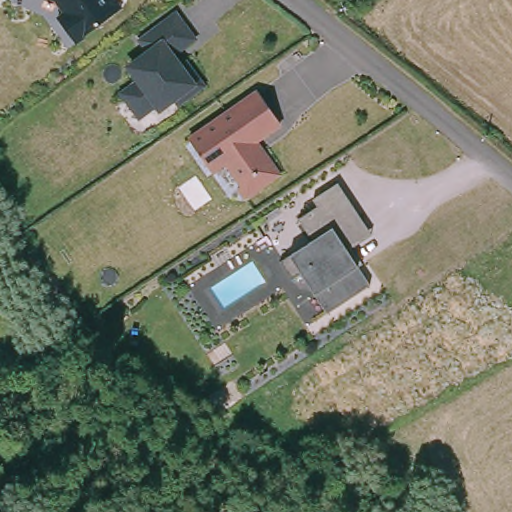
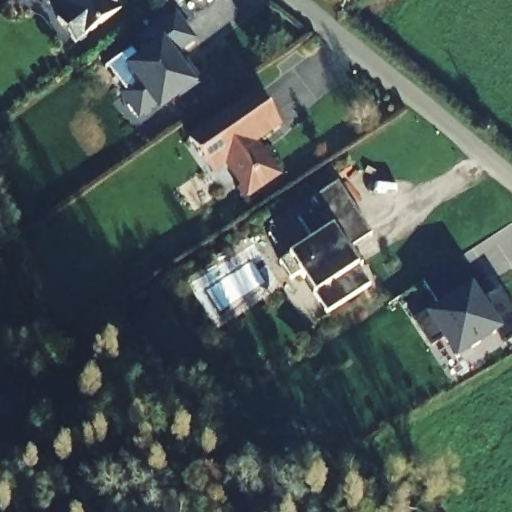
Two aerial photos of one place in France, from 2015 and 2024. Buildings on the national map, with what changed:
unchanged [(76,44),(57,19),(66,11),(57,0),(117,0),(123,8),(76,44)]
unchanged [(201,40),(179,55),(184,64),(190,60),(207,85),(179,105),(175,102),(158,114),(155,109),(142,120),(117,88),(130,78),(124,69),(147,48),(138,37),(178,9),(201,40)]
unchanged [(285,126),(262,141),(282,174),(248,197),(225,167),(214,175),(188,138),(258,87),(285,126)]
unchanged [(374,233),(354,246),(366,263),(360,268),(371,284),(329,313),(300,275),(293,279),(281,263),(314,238),(301,219),(319,205),(315,198),(340,181),(374,233)]
new [(505,345),(499,335),(457,363),(441,340),(432,346),(416,321),(425,315),(437,308),(422,282),(452,264),(467,289),(472,286),(483,302),(500,293),(512,311),(512,340),(505,345)]

